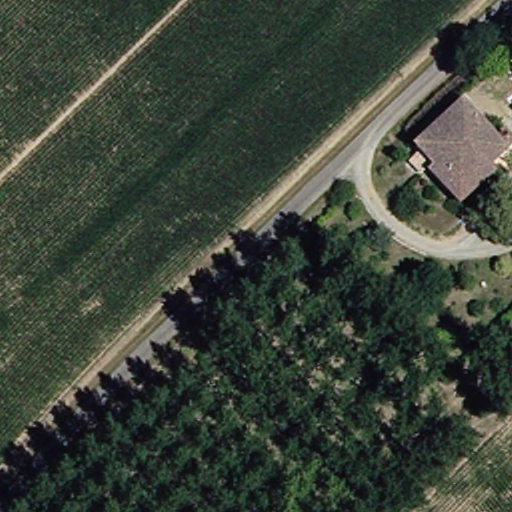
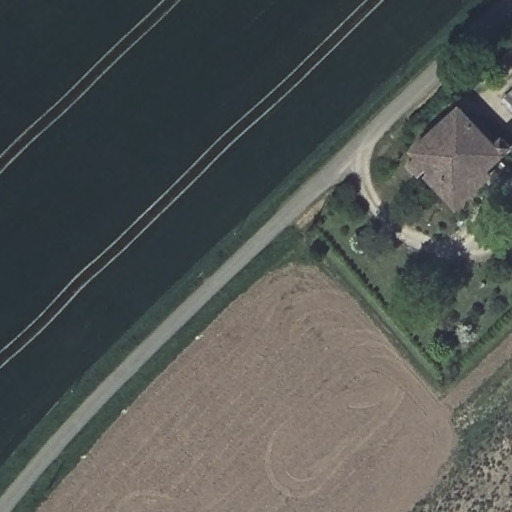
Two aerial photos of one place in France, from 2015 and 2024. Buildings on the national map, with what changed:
unchanged [(512,114),(505,107),(512,101),(512,114)]
unchanged [(463,200),(454,190),(437,207),(392,161),(453,106),(485,141),(494,134),(502,145),(495,152),(505,163),(463,200)]

